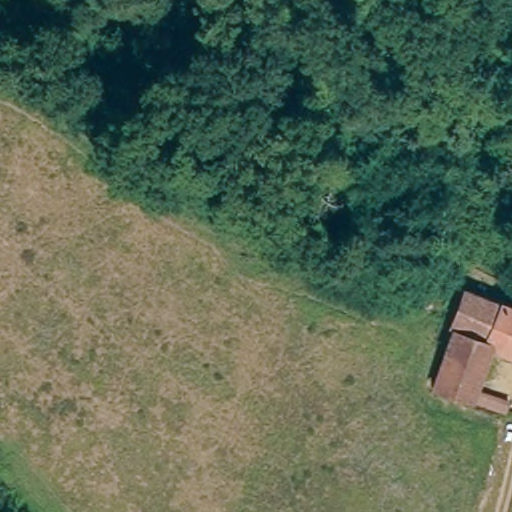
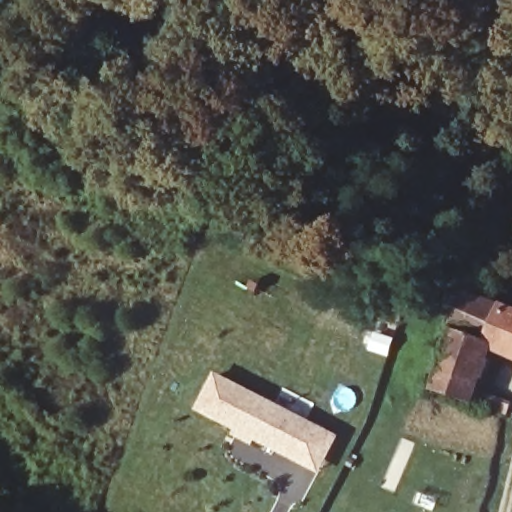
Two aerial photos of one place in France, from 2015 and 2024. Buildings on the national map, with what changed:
unchanged [(461,334),(479,293),(512,307),(512,353),(487,342),(470,404),(430,390),(452,332),(461,334)]
new [(340,436),(320,474),(255,440),(252,446),(232,436),(235,430),(195,411),(215,372),(340,436)]

